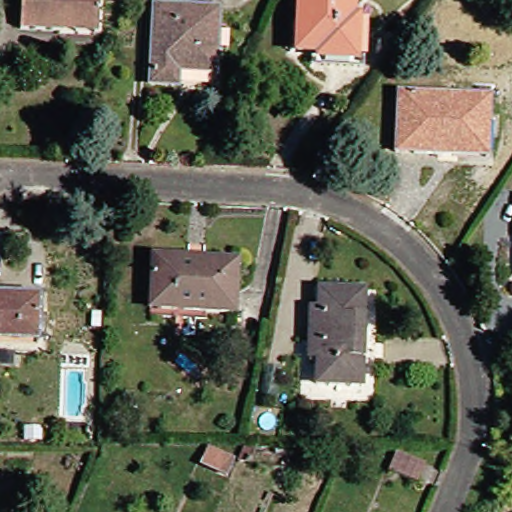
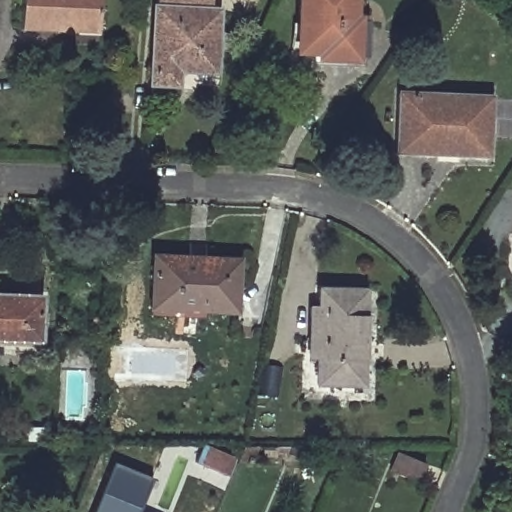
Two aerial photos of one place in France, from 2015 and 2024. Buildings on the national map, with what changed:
unchanged [(24,0),(101,0),(101,17),(100,30),(59,27),(22,26),(24,0)]
unchanged [(162,0),(209,0),(209,12),(219,12),(216,71),(179,70),(178,85),(153,84),(156,9),(162,9),(162,0)]
unchanged [(358,17),(357,59),(318,59),(318,52),(300,52),(301,0),(355,0),(354,16),(358,17)]
unchanged [(446,155),(398,153),(402,94),(492,96),(491,123),(490,156),(446,155)]
unchanged [(235,313),(151,309),(153,265),(154,255),(205,258),(240,260),(235,313)]
unchanged [(363,385),(317,385),(318,358),(310,358),(311,307),(318,306),(320,290),(367,290),(363,385)]
unchanged [(39,341),(0,340),(0,294),(42,295),(39,341)]
unchanged [(388,467),(397,450),(427,465),(418,482),(388,467)]
unchanged [(230,462),(224,476),(201,467),(207,452),(230,462)]
new [(113,463),(152,480),(140,512),(94,512),(113,463)]

